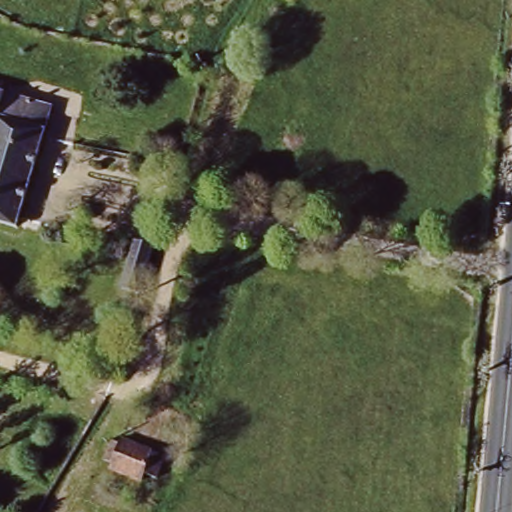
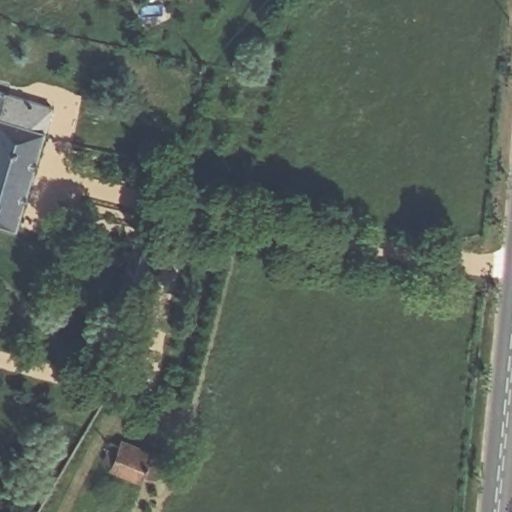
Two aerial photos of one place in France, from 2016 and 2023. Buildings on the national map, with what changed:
unchanged [(0,98),(0,90),(2,90),(0,98)]
unchanged [(55,105),(45,139),(22,219),(20,226),(0,221),(0,98),(2,90),(55,105)]
unchanged [(122,300),(135,253),(157,256),(142,306),(122,300)]
unchanged [(117,442),(118,438),(164,456),(155,479),(142,474),(140,480),(109,468),(111,462),(100,457),(108,438),(117,442)]

